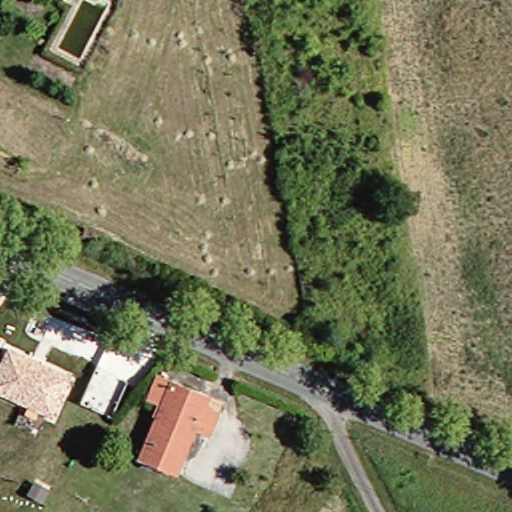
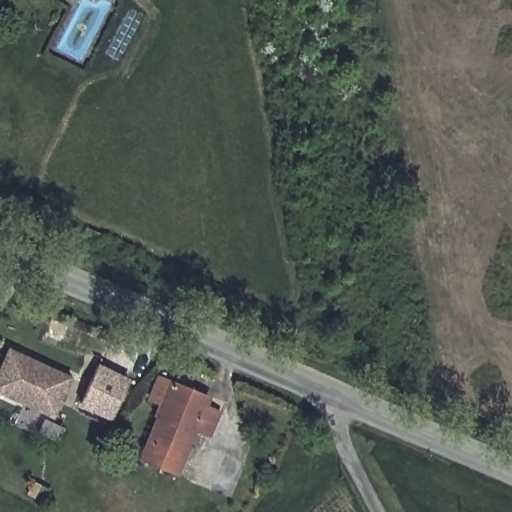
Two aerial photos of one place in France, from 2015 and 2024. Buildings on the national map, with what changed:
unchanged [(53,419),(0,395),(0,363),(7,347),(71,375),(53,419)]
new [(78,407),(97,364),(130,379),(110,422),(78,407)]
unchanged [(201,401),(222,409),(213,432),(198,427),(180,471),(146,458),(169,399),(157,395),(166,372),(177,377),(205,388),(201,401)]

